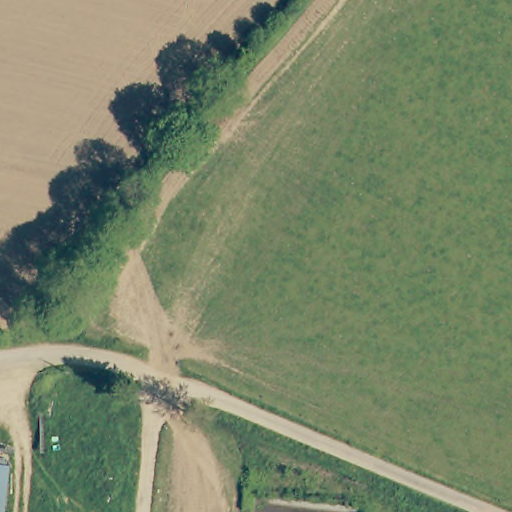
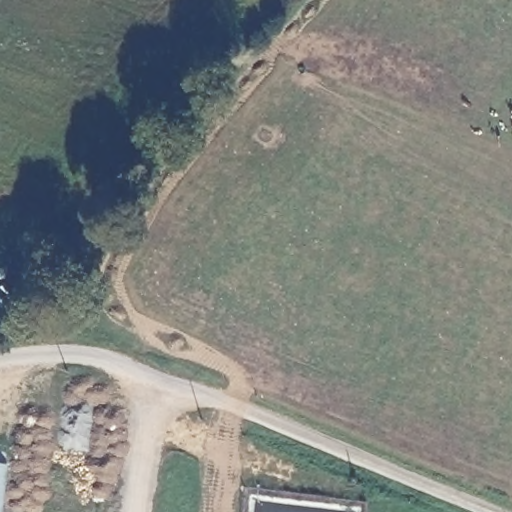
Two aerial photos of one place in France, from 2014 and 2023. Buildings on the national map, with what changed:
unchanged [(3,461),(0,499),(0,460),(3,461)]

